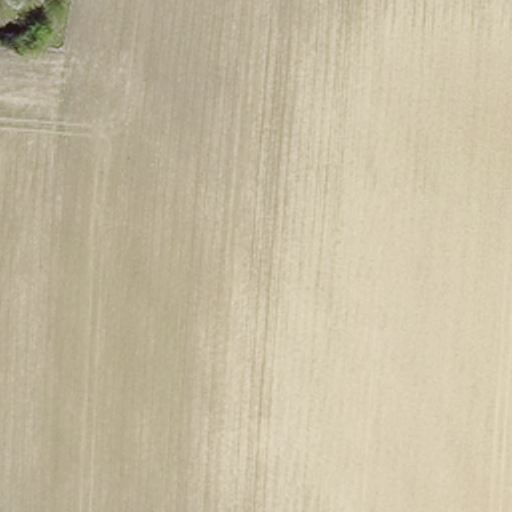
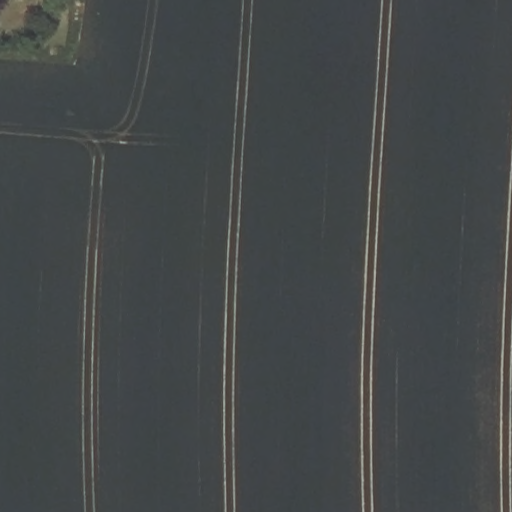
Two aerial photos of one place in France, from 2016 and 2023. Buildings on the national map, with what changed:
[]

